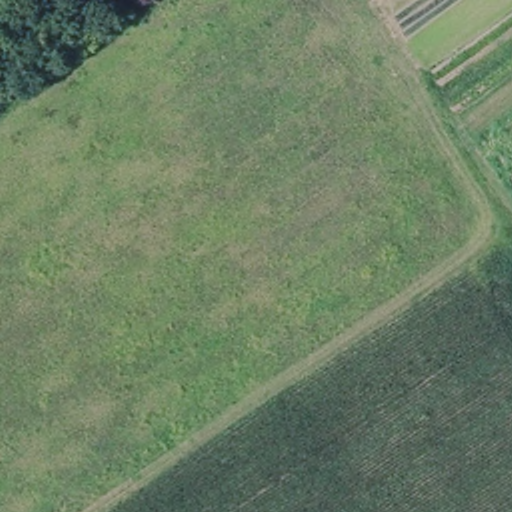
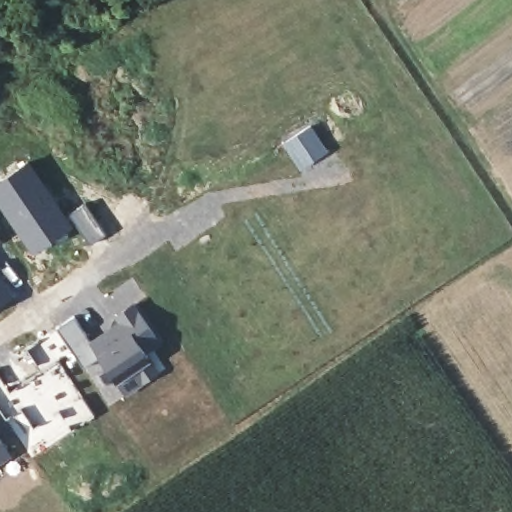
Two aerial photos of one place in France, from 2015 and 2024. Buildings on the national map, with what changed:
new [(91,244),(75,222),(71,225),(32,250),(0,204),(0,180),(30,161),(66,215),(84,202),(106,234),(91,244)]
new [(0,241),(0,240),(1,241),(0,241)]
new [(0,306),(0,267),(19,294),(0,306)]
new [(135,303),(162,343),(152,351),(165,369),(125,396),(106,369),(89,339),(135,303)]
new [(74,315),(89,339),(106,369),(125,396),(110,405),(57,327),(74,315)]
new [(34,427),(21,408),(6,419),(0,410),(0,373),(10,389),(42,368),(28,347),(57,327),(73,350),(60,359),(96,416),(72,431),(60,410),(34,427)]
new [(0,464),(0,439),(12,456),(0,464)]

